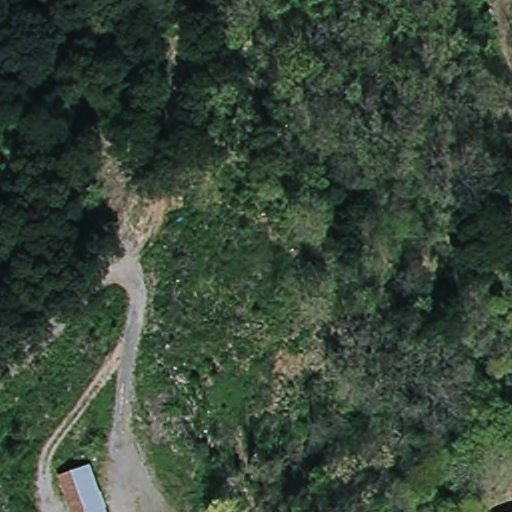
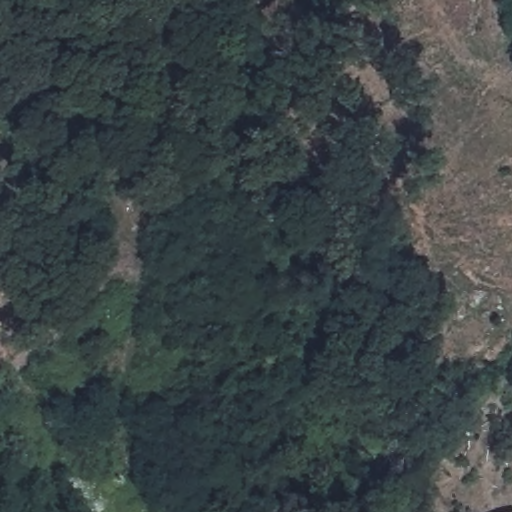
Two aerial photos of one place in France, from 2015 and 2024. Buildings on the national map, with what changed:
demolished [(93,467),(109,512),(76,512),(64,477),(93,467)]
unchanged [(512,509),(512,512),(495,512),(512,509)]

